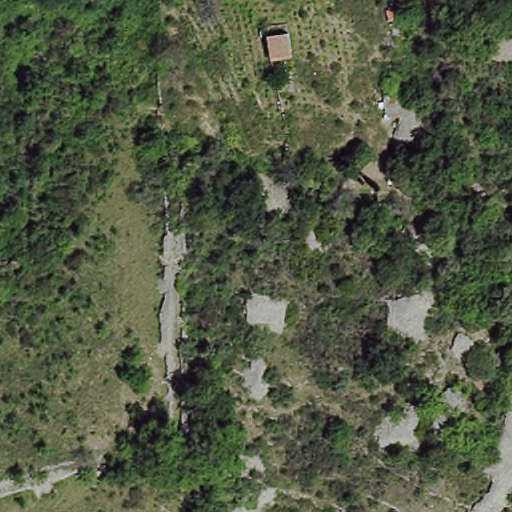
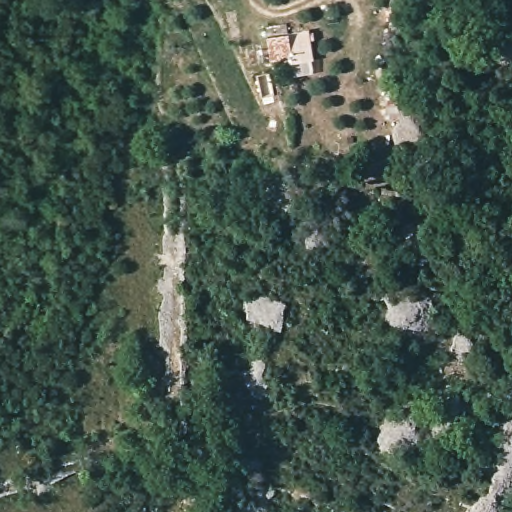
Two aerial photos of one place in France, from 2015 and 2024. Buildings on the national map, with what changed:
unchanged [(302,59),(271,61),(270,30),(300,27),(302,59)]

